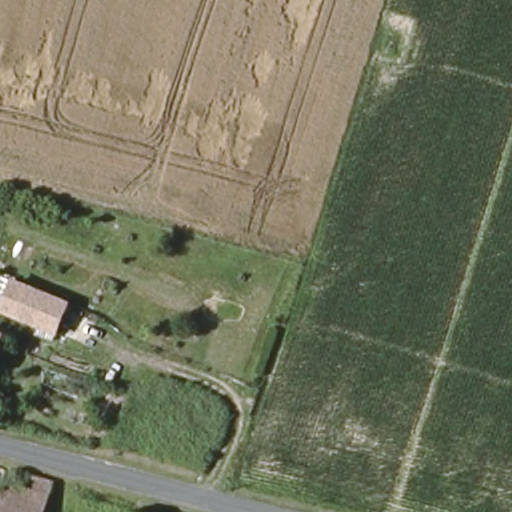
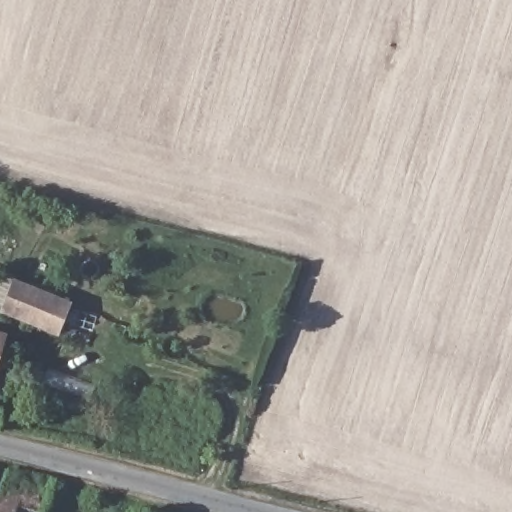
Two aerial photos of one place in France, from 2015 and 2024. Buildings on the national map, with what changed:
unchanged [(0,311),(0,272),(104,316),(89,350),(0,311)]
unchanged [(0,512),(0,503),(8,473),(57,485),(49,512),(0,512)]

